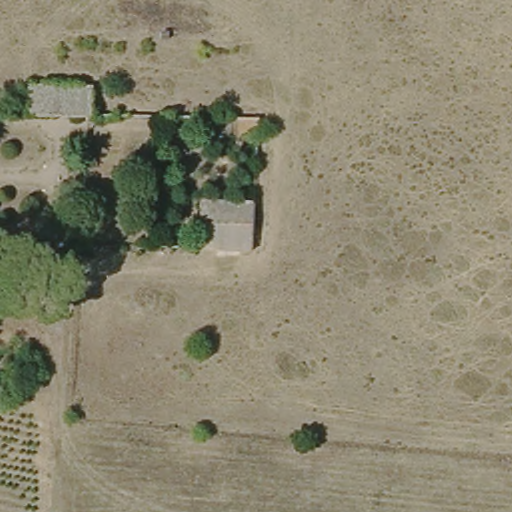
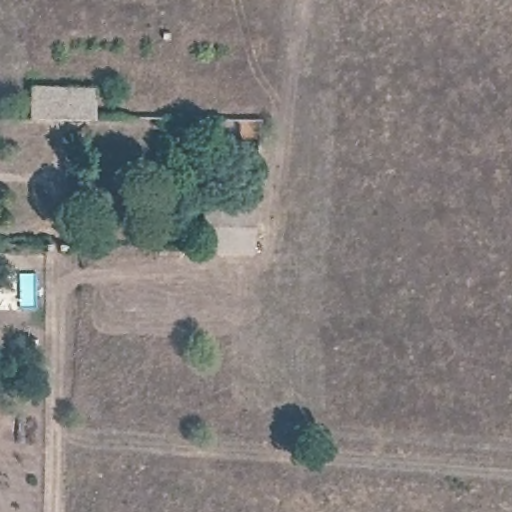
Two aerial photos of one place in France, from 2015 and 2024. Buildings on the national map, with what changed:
unchanged [(105,115),(98,115),(40,112),(41,81),(106,83),(105,115)]
unchanged [(261,144),(223,142),(223,119),(262,120),(261,144)]
unchanged [(251,250),(200,249),(205,196),(253,198),(251,250)]

